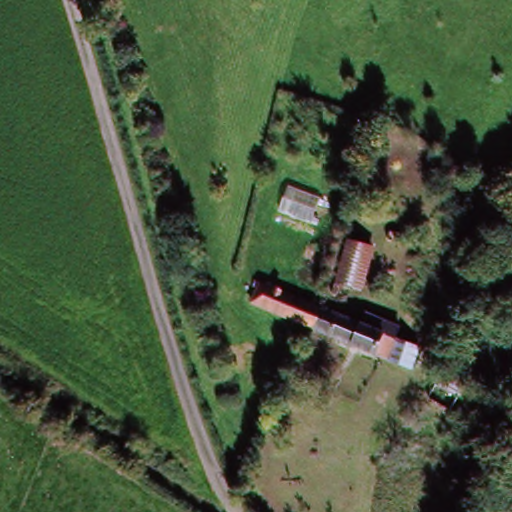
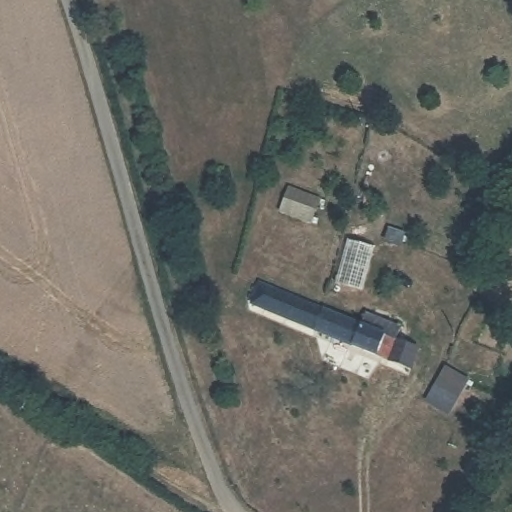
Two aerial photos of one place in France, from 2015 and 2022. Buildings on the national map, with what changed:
unchanged [(390,230),(404,237),(399,249),(385,242),(390,230)]
unchanged [(346,241),(369,247),(358,290),(334,284),(346,241)]
unchanged [(316,333),(253,307),(262,288),(324,314),(316,333)]
unchanged [(408,374),(389,366),(316,333),(324,314),(363,331),(367,320),(403,335),(398,346),(417,354),(408,374)]
unchanged [(423,403),(434,379),(456,389),(445,413),(423,403)]

